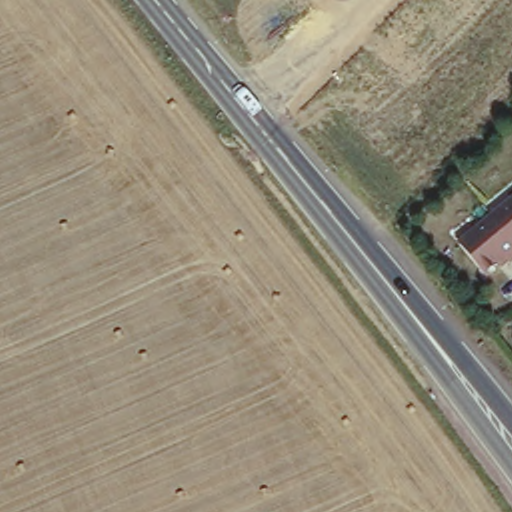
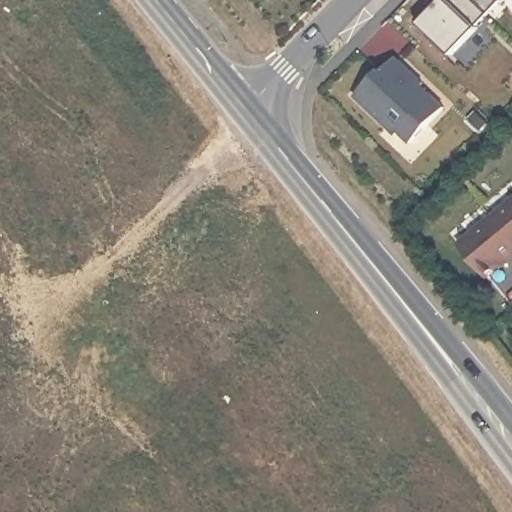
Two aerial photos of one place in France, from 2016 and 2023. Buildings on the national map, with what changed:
new [(474,28),(476,29),(450,57),(413,21),(430,4),(433,7),(440,0),(444,0),(446,1),(446,0),(469,0),(486,15),(474,28)]
new [(498,3),(486,15),(469,0),(503,0),(499,4),(498,3)]
new [(409,145),(397,134),(394,137),(353,98),(378,72),(380,74),(394,59),(422,86),(420,88),(442,109),(409,145)]
unchanged [(512,257),(508,261),(504,257),(484,274),(456,242),(512,194),(512,257)]

